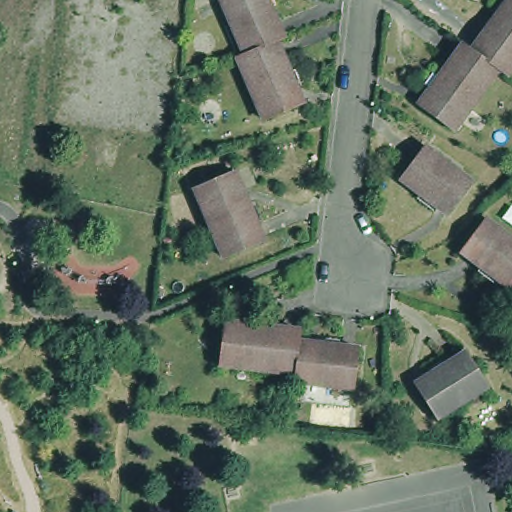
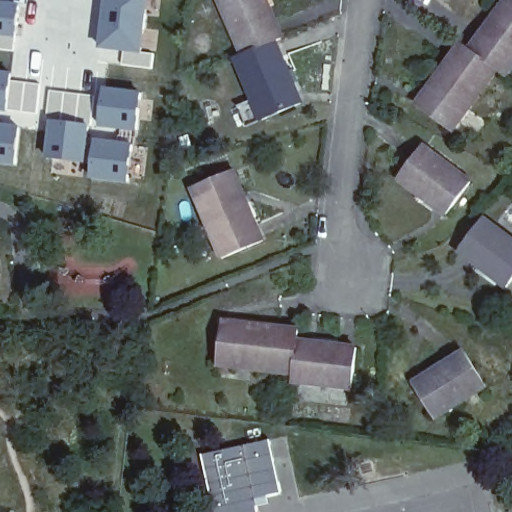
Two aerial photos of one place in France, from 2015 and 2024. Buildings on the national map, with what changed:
new [(20,2),(13,50),(0,49),(0,0),(20,2)]
new [(158,30),(155,52),(142,50),(141,55),(98,49),(104,0),(147,0),(144,28),(158,30)]
unchanged [(266,6),(280,38),(272,41),(240,55),(217,0),(271,0),(273,4),(266,6)]
unchanged [(491,14),(486,10),(492,0),(500,0),(501,0),(512,0),(512,59),(502,72),(491,65),(466,47),(491,14)]
unchanged [(491,65),(448,126),(413,101),(426,82),(420,78),(428,66),(435,71),(457,40),(466,47),(491,65)]
unchanged [(272,41),(285,71),(291,69),(296,81),(290,84),(299,104),(260,120),(233,58),(240,55),(272,41)]
new [(36,114),(6,111),(0,110),(0,70),(12,71),(11,79),(41,82),(36,114)]
new [(100,85),(141,90),(136,131),(95,126),(100,85)]
new [(46,118),(89,124),(87,140),(86,159),(86,163),(41,157),(46,118)]
new [(18,125),(13,166),(0,164),(0,123),(18,125)]
new [(87,140),(91,140),(92,136),(131,141),(127,184),(88,178),(90,159),(86,159),(87,140)]
unchanged [(417,190),(422,185),(402,169),(426,137),(473,174),(449,206),(434,194),(430,200),(417,190)]
unchanged [(258,216),(251,219),(259,237),(220,254),(189,183),(230,166),(246,205),(253,202),(258,216)]
unchanged [(485,258),(466,242),(489,211),(512,229),(512,279),(496,266),(492,272),(481,263),(485,258)]
unchanged [(296,362),(221,355),(226,312),(245,315),(246,307),(260,309),(260,316),(302,322),(300,331),(296,362)]
unchanged [(300,331),(326,335),(327,327),(341,329),(340,337),(358,339),(353,378),(295,372),(296,362),(300,331)]
unchanged [(490,382),(440,414),(419,380),(436,369),(433,362),(445,355),(448,361),(470,348),(490,382)]
new [(268,441),(280,493),(253,498),(255,512),(212,512),(201,455),(268,441)]

